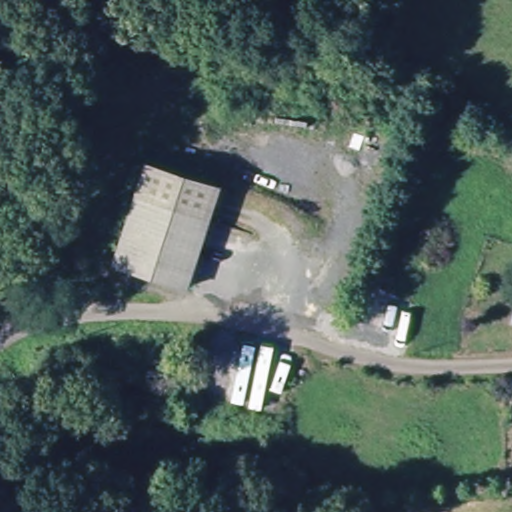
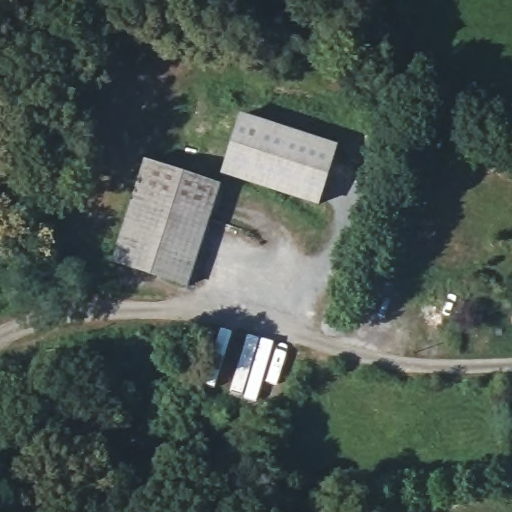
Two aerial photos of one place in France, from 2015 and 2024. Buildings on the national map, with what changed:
new [(221,175),(240,113),(339,145),(318,207),(221,175)]
unchanged [(184,288),(110,263),(110,262),(145,163),(218,189),(184,288)]
unchanged [(511,325),(512,319),(512,326),(511,325)]

